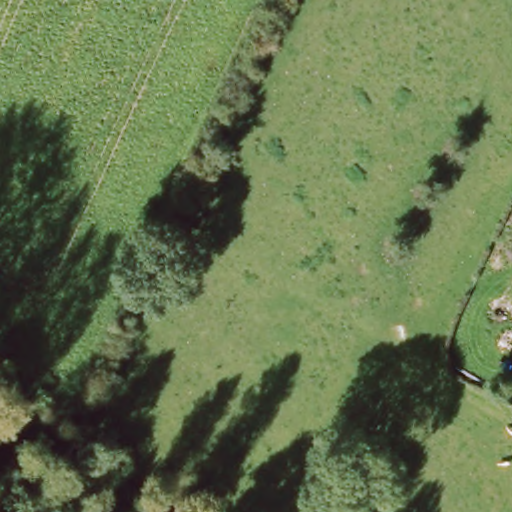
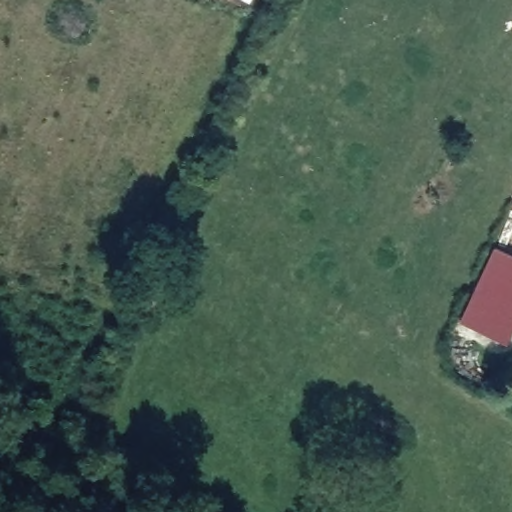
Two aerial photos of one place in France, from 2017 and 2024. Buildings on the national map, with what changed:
new [(493,248),(512,256),(512,330),(506,343),(458,322),(493,248)]

